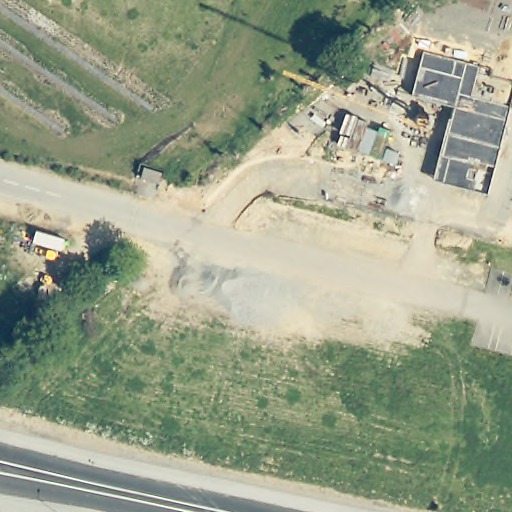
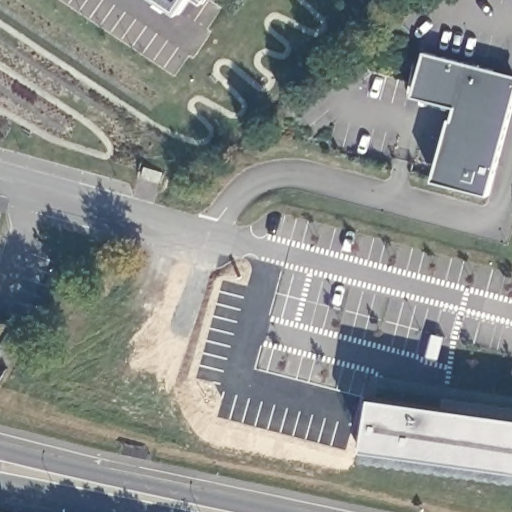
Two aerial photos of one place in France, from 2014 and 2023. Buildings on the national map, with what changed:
new [(169,0),(186,0),(180,8),(169,0)]
unchanged [(479,66),(472,96),(510,106),(487,195),(433,180),(452,106),(411,95),(424,51),(479,66)]
new [(512,97),(510,106),(472,96),(476,79),(479,66),(512,75),(512,97)]
new [(145,169),(162,174),(159,185),(141,179),(145,169)]
new [(373,395),(445,406),(447,397),(512,407),(512,468),(367,447),(373,395)]

